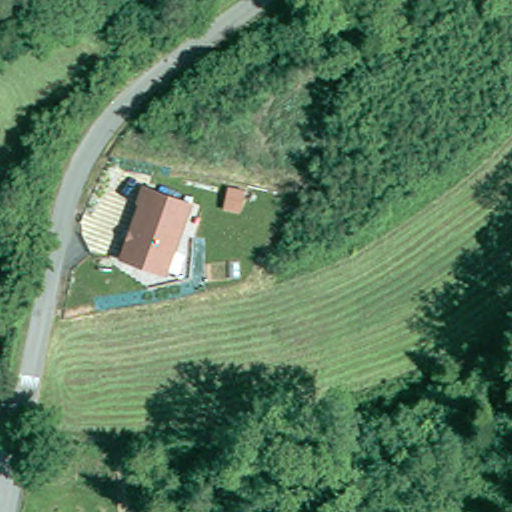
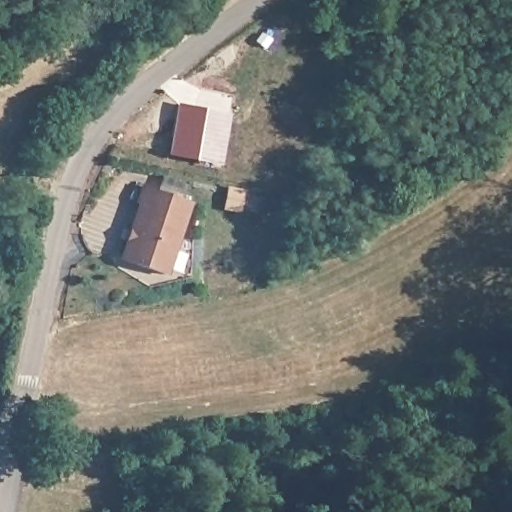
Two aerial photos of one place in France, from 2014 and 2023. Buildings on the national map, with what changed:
new [(178,100),(230,112),(220,164),(167,154),(178,100)]
unchanged [(144,185),(195,201),(169,276),(119,257),(144,185)]

